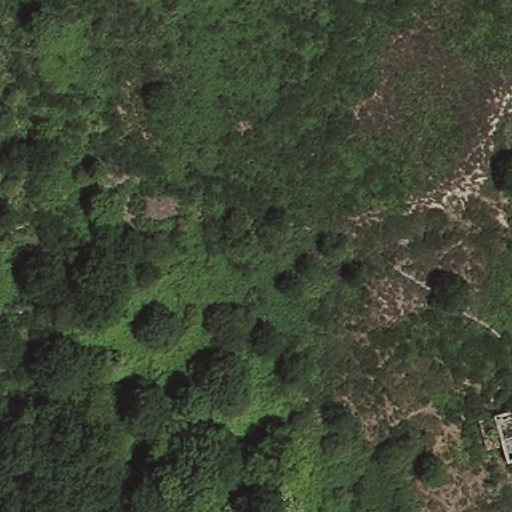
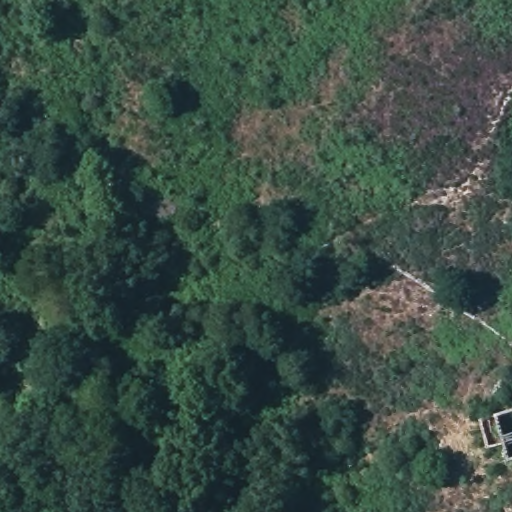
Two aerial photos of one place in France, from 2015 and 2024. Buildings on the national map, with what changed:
unchanged [(501,466),(488,414),(512,407),(512,462),(508,463),(501,466)]

